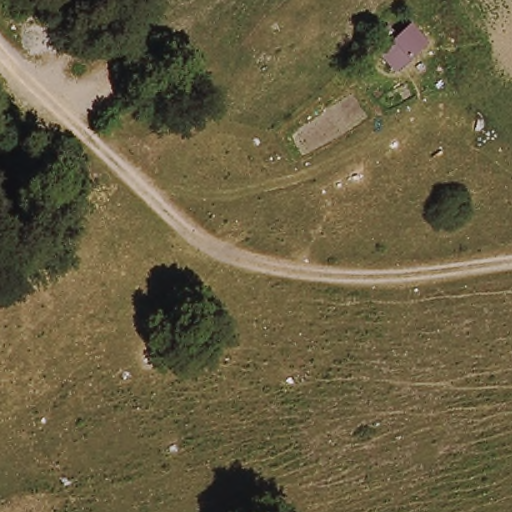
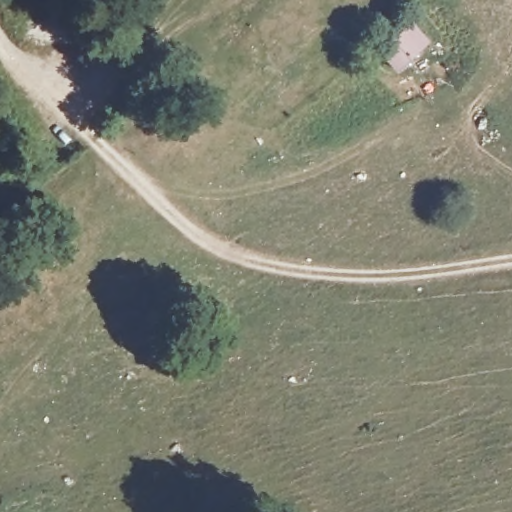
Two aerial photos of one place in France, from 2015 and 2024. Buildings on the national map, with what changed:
unchanged [(435,43),(394,71),(380,52),(419,25),(435,43)]

